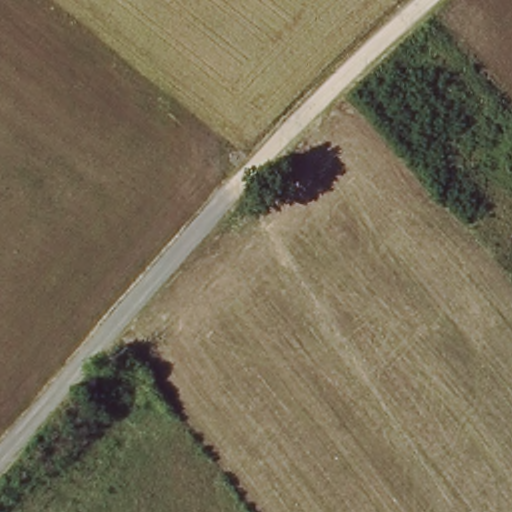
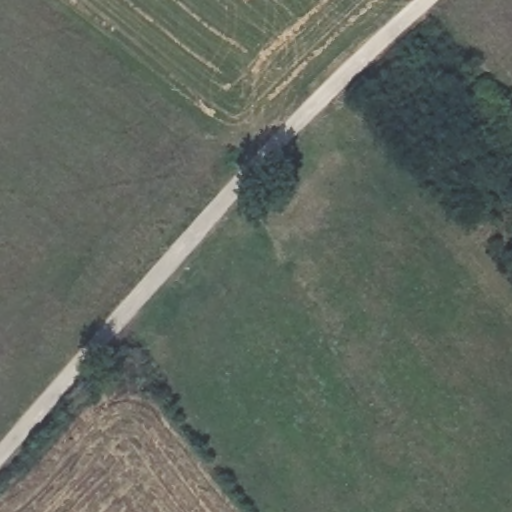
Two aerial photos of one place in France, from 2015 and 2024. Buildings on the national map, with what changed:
[]

